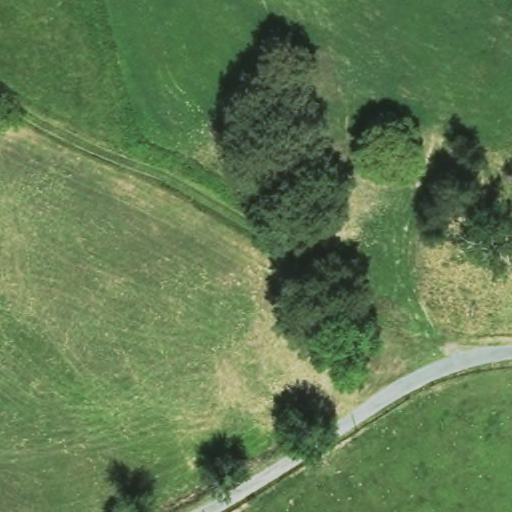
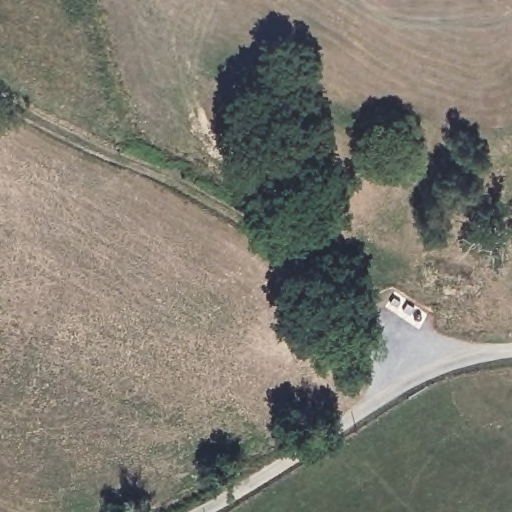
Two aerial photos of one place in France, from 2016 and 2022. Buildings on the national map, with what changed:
[]

